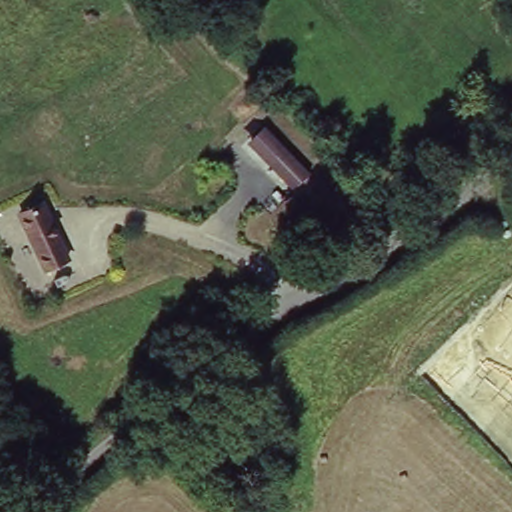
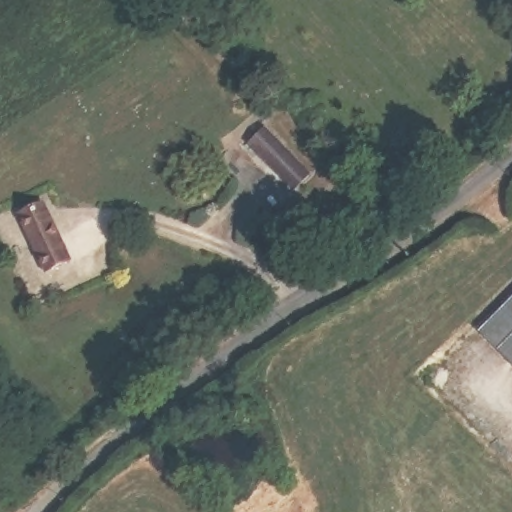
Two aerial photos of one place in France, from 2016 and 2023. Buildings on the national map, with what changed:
unchanged [(265,122),(312,167),(294,186),(247,142),(265,122)]
unchanged [(46,204),(72,259),(47,271),(21,216),(46,204)]
new [(512,302),(512,364),(481,334),(512,302)]

